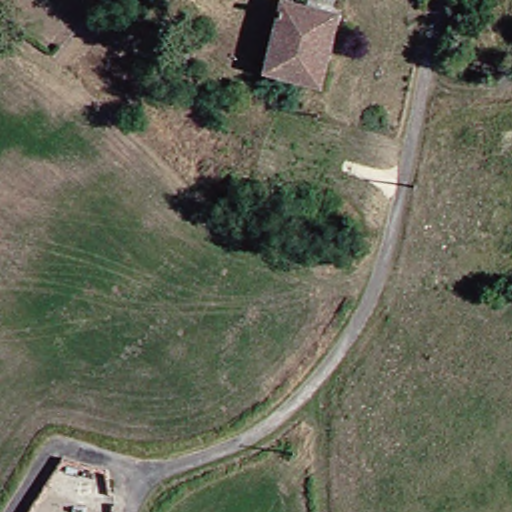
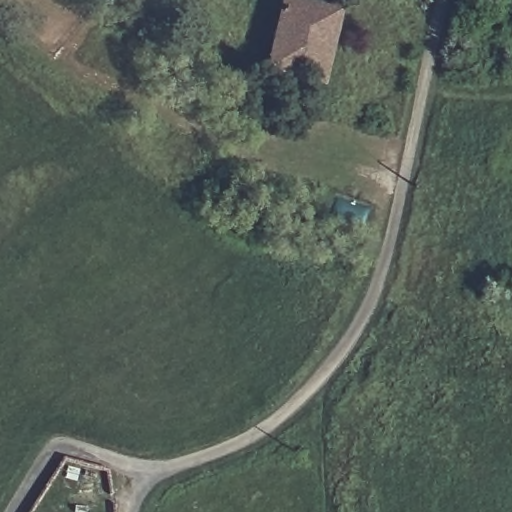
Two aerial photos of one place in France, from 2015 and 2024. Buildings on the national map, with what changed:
unchanged [(330,20),(311,86),(260,70),(277,5),(330,20)]

